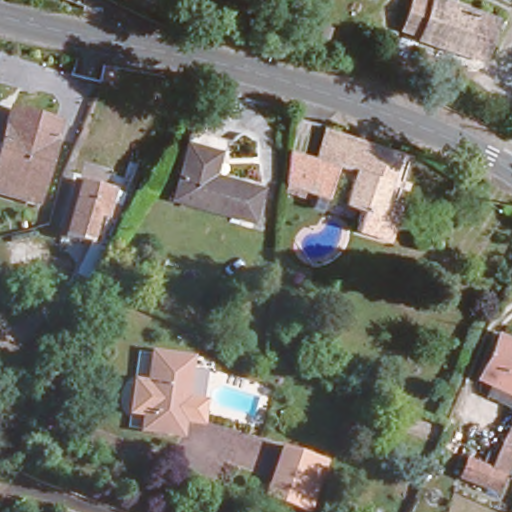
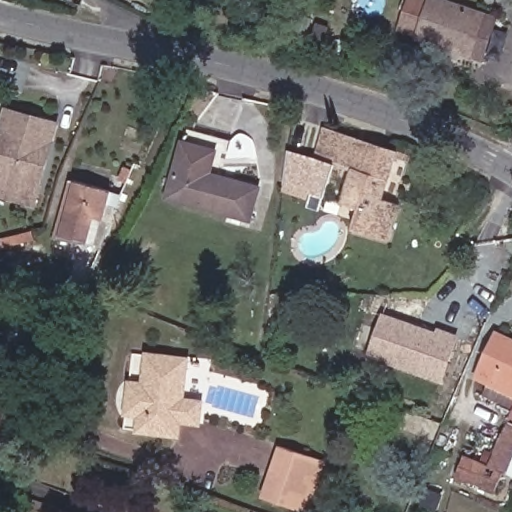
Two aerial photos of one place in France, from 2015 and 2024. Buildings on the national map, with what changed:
unchanged [(472,47),(404,28),(410,0),(460,0),(482,6),(472,47)]
unchanged [(9,104),(58,117),(36,200),(0,190),(0,135),(9,104)]
unchanged [(225,138),(215,172),(250,183),(240,215),(162,189),(185,125),(225,138)]
unchanged [(356,205),(341,200),(351,166),(331,160),(323,186),(281,172),(284,150),(312,157),(320,127),(392,151),(378,192),(401,199),(388,237),(351,222),(356,205)]
unchanged [(107,247),(94,244),(59,235),(60,216),(73,172),(111,181),(124,184),(107,247)]
new [(369,352),(383,314),(437,334),(438,329),(452,334),(437,377),(369,352)]
unchanged [(497,368),(505,371),(507,366),(486,356),(496,334),(512,341),(512,400),(488,390),(497,368)]
unchanged [(147,385),(150,352),(191,358),(185,400),(202,402),(199,426),(181,424),(179,435),(140,432),(141,412),(129,411),(131,382),(147,385)]
unchanged [(460,470),(470,451),(491,461),(512,416),(512,451),(496,485),(460,470)]
unchanged [(322,456),(304,508),(264,496),(282,443),(322,456)]

